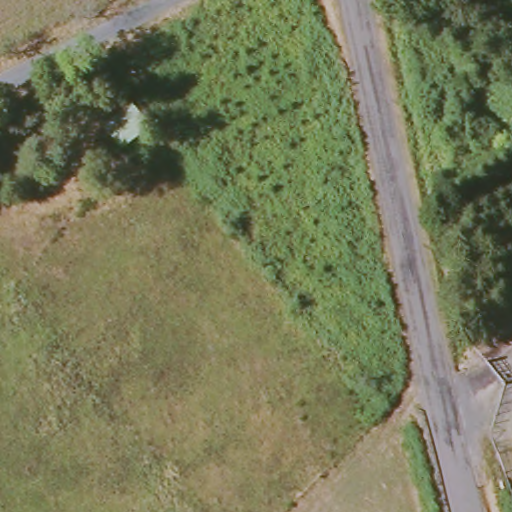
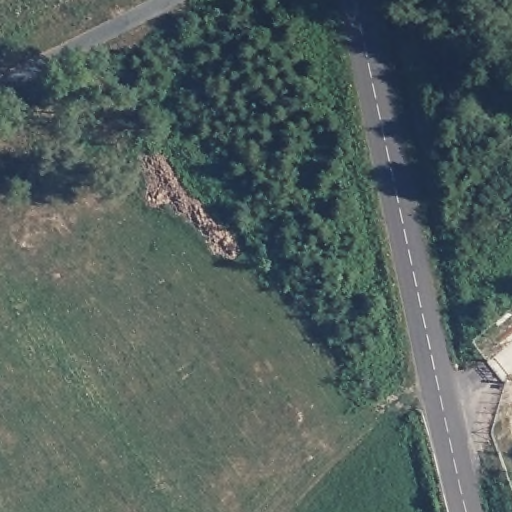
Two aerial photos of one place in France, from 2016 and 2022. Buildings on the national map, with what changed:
unchanged [(140,105),(157,131),(122,158),(103,130),(140,105)]

